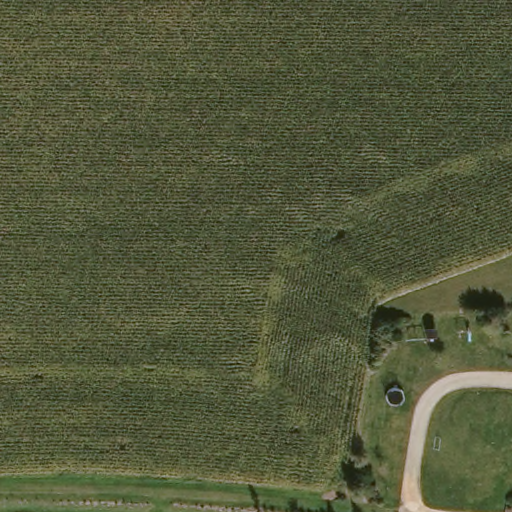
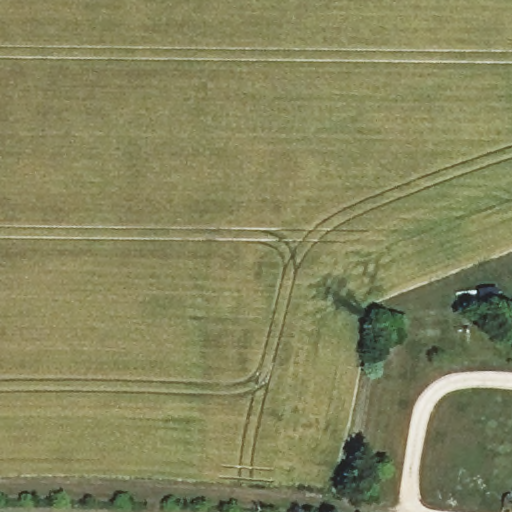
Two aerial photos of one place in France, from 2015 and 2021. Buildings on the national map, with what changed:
[]

